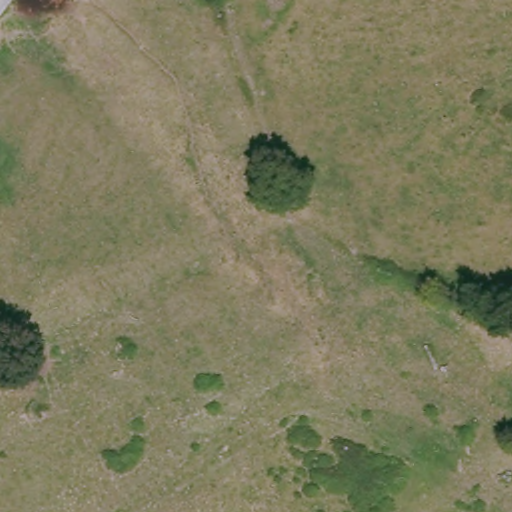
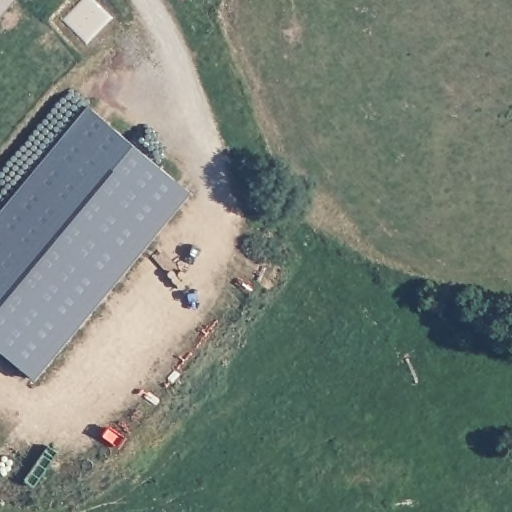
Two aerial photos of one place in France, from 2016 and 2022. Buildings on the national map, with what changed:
unchanged [(0,15),(0,0),(13,0),(0,15)]
new [(0,348),(0,214),(90,107),(193,192),(38,379),(0,348)]

